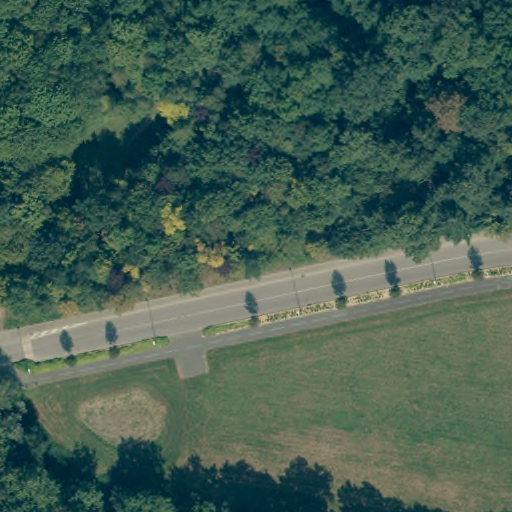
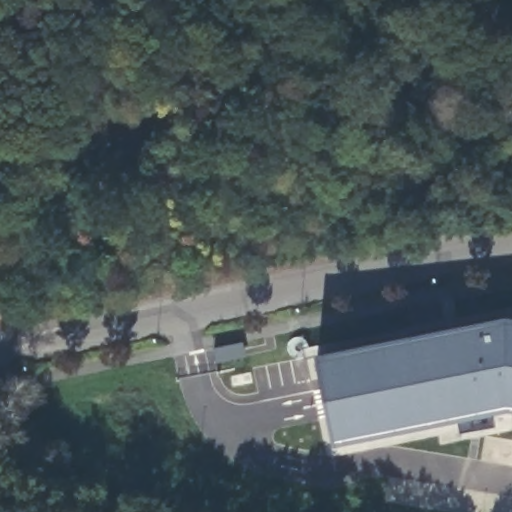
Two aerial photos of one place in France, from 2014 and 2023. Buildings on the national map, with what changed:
new [(318,359),(506,319),(512,320),(512,415),(509,415),(337,448),(318,359)]

